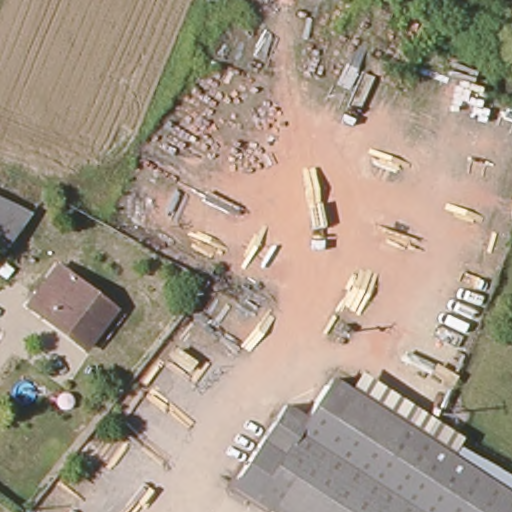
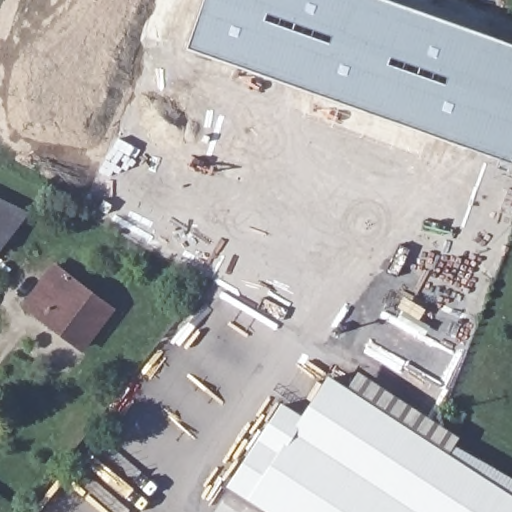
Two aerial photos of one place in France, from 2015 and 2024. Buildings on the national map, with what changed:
new [(512,43),(512,161),(187,47),(204,0),(392,0),(512,43)]
unchanged [(0,253),(0,201),(29,215),(0,253)]
unchanged [(55,328),(26,305),(56,267),(112,310),(89,341),(83,349),(55,328)]
unchanged [(336,330),(339,323),(346,327),(343,333),(336,330)]
unchanged [(259,442),(268,448),(294,408),(303,414),(277,454),(279,455),(329,379),(416,435),(422,427),(512,478),(512,512),(272,512),(232,485),(259,442)]

